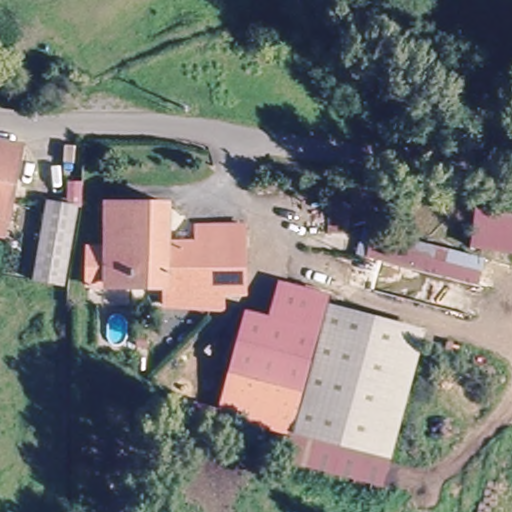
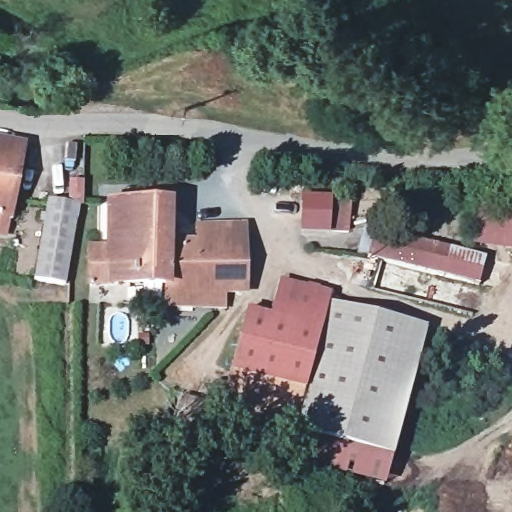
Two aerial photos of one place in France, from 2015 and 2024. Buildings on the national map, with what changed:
unchanged [(22,146),(3,235),(0,235),(0,142),(22,146)]
new [(348,235),(299,232),(301,198),(351,201),(348,235)]
unchanged [(164,241),(177,242),(177,239),(194,238),(193,223),(242,221),(242,288),(228,287),(227,301),(161,300),(162,280),(83,279),(84,244),(103,244),(103,199),(164,199),(164,241)]
unchanged [(34,280),(48,201),(78,207),(64,286),(34,280)]
unchanged [(512,252),(470,247),(474,209),(512,215),(512,252)]
unchanged [(484,259),(476,286),(357,254),(364,228),(484,259)]
unchanged [(326,295),(324,303),(316,335),(289,433),(219,415),(247,311),(271,317),(281,282),(326,295)]
unchanged [(316,335),(324,303),(422,329),(416,351),(387,460),(332,445),(312,439),(289,433),(316,335)]
unchanged [(332,445),(387,460),(381,485),(320,469),(305,464),(312,439),(332,445)]

